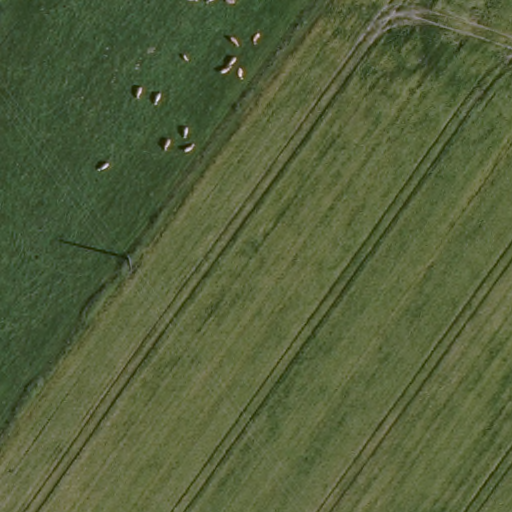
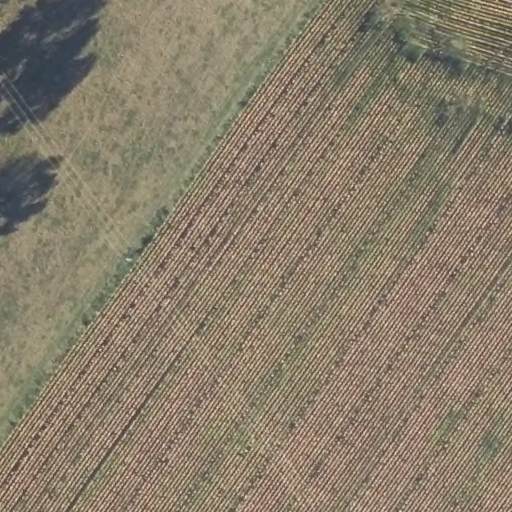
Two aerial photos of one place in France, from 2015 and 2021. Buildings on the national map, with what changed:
[]

